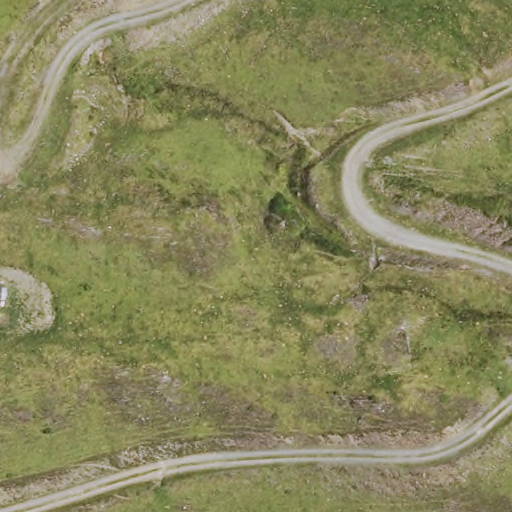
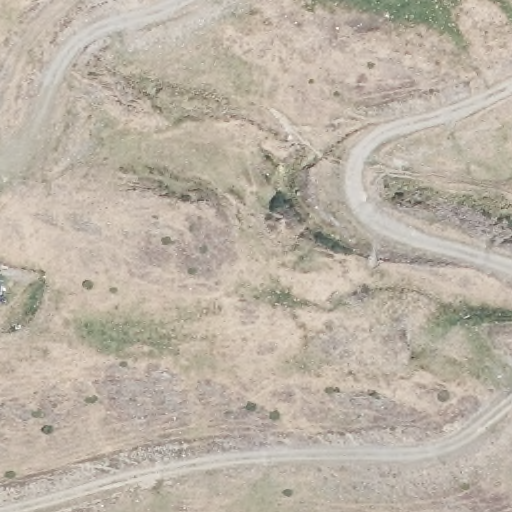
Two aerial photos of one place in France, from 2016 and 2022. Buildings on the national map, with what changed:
unchanged [(7,283),(5,307),(0,307),(0,283),(7,283)]

